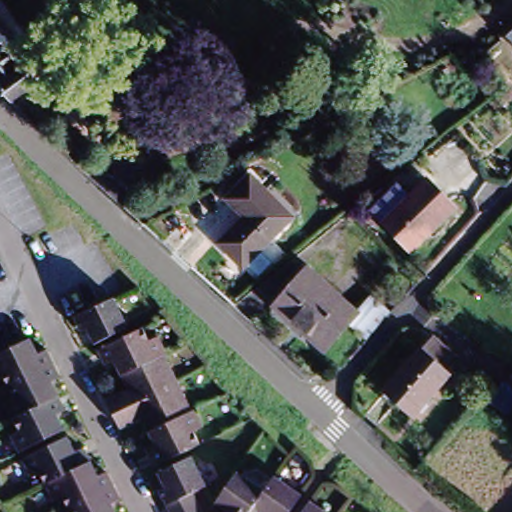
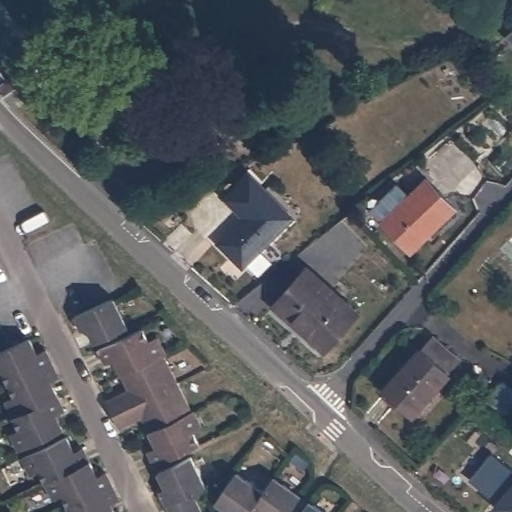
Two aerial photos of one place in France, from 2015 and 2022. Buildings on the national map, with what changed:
unchanged [(16,67),(18,66),(32,84),(9,102),(0,94),(0,24),(15,44),(26,58),(16,66),(16,67)]
unchanged [(508,36),(512,32),(512,40),(508,36)]
unchanged [(510,107),(512,105),(512,110),(510,107)]
unchanged [(247,177),(290,218),(242,266),(219,244),(244,220),(224,201),(247,177)]
unchanged [(454,210),(409,252),(380,222),(365,207),(388,186),(402,201),(425,180),(454,210)]
unchanged [(289,322),(272,307),(306,268),(357,312),(327,347),(322,352),(289,322)]
unchanged [(113,299),(127,327),(96,342),(89,328),(82,331),(76,317),(113,299)]
unchanged [(379,327),(367,317),(376,309),(386,318),(379,327)]
unchanged [(150,342),(158,338),(167,355),(164,356),(191,412),(194,411),(202,428),(193,432),(199,445),(157,466),(150,452),(159,448),(143,417),(121,427),(109,402),(131,391),(115,358),(106,363),(100,351),(143,329),(150,342)]
unchanged [(381,391),(417,347),(419,348),(431,336),(459,359),(447,372),(448,373),(411,417),(381,391)]
unchanged [(30,340),(37,355),(46,351),(59,377),(50,381),(64,411),(55,415),(62,430),(20,451),(12,435),(21,431),(6,402),(14,398),(2,373),(0,374),(0,353),(25,342),(30,340)]
unchanged [(499,405),(512,392),(512,417),(499,405)]
unchanged [(74,454),(84,450),(97,477),(106,474),(118,501),(110,505),(114,512),(71,512),(63,496),(54,500),(40,471),(31,475),(24,459),(66,438),(74,454)]
new [(492,453),(512,469),(512,512),(501,512),(494,506),(497,502),(472,480),(492,453)]
unchanged [(162,492),(167,488),(160,473),(192,458),(205,487),(192,493),(200,512),(171,512),(162,492)]
unchanged [(290,511),(288,512),(228,512),(217,503),(237,473),(263,492),(274,477),(300,496),(290,511)]
unchanged [(305,507),(309,501),(324,512),(301,512),(305,507)]

